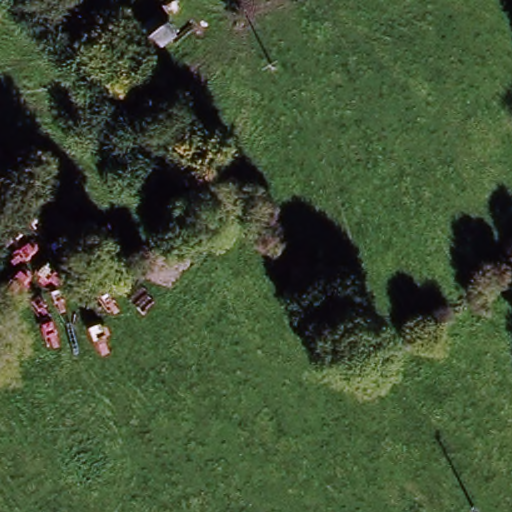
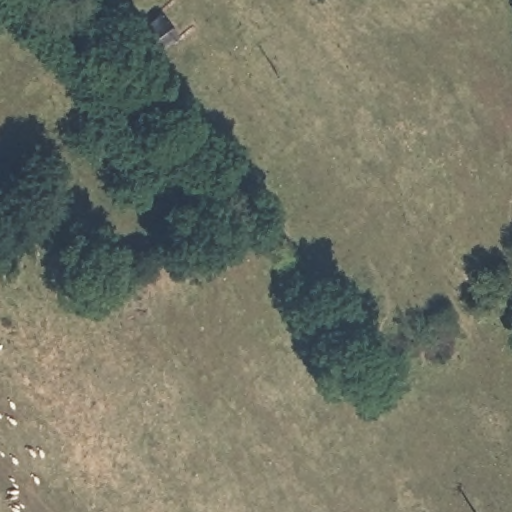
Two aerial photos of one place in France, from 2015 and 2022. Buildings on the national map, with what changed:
unchanged [(162,15),(176,34),(152,54),(137,34),(162,15)]

